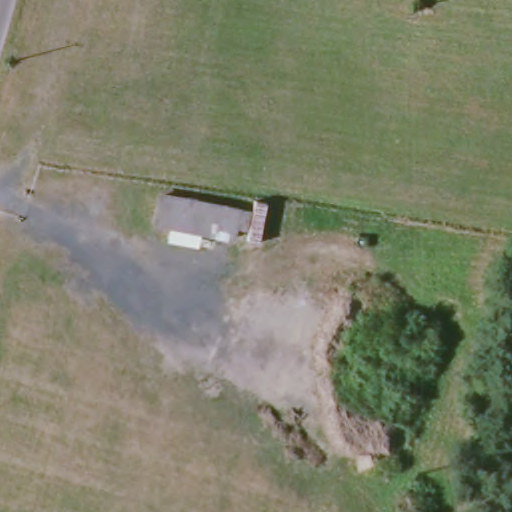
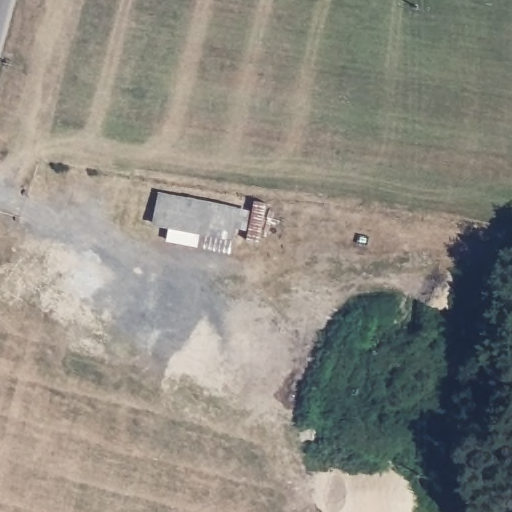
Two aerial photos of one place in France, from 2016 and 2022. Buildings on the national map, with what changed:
unchanged [(233,205),(230,234),(157,219),(163,190),(233,205)]

